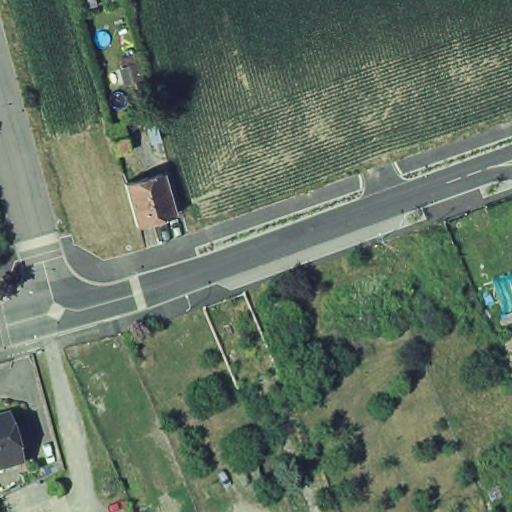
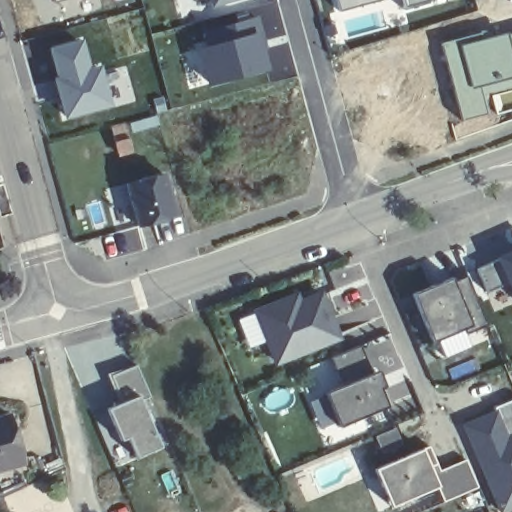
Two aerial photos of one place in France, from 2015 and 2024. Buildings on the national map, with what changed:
new [(209,7),(206,0),(233,0),(209,7)]
new [(336,11),(332,0),(372,0),(336,11)]
new [(402,9),(399,0),(429,0),(402,9)]
new [(205,45),(202,29),(259,12),(271,68),(205,84),(195,48),(205,45)]
new [(486,35),(512,29),(512,88),(483,96),(487,112),(460,120),(438,43),(485,30),(486,35)]
new [(82,36),(90,66),(98,64),(110,104),(62,118),(45,47),(82,36)]
unchanged [(133,140),(136,152),(122,157),(119,144),(133,140)]
unchanged [(133,178),(134,184),(164,175),(176,219),(138,230),(124,181),(133,178)]
new [(487,292),(478,268),(496,260),(495,255),(512,248),(512,294),(507,284),(487,292)]
new [(436,286),(438,290),(471,276),(492,326),(477,332),(474,327),(436,343),(416,294),(436,286)]
new [(299,297),(302,304),(324,295),(341,338),(280,363),(260,312),(284,302),(299,297)]
new [(345,386),(334,358),(364,346),(375,373),(377,373),(392,407),(343,428),(328,393),(345,386)]
new [(141,402),(160,447),(135,458),(127,439),(120,441),(107,409),(118,404),(106,374),(126,369),(135,365),(150,398),(141,402)]
new [(497,408),(512,401),(512,509),(504,512),(468,426),(499,413),(497,408)]
unchanged [(3,418),(15,465),(0,468),(0,418),(3,418)]
new [(386,488),(378,470),(433,446),(443,471),(469,460),(481,488),(447,502),(441,487),(400,505),(394,508),(386,488)]

